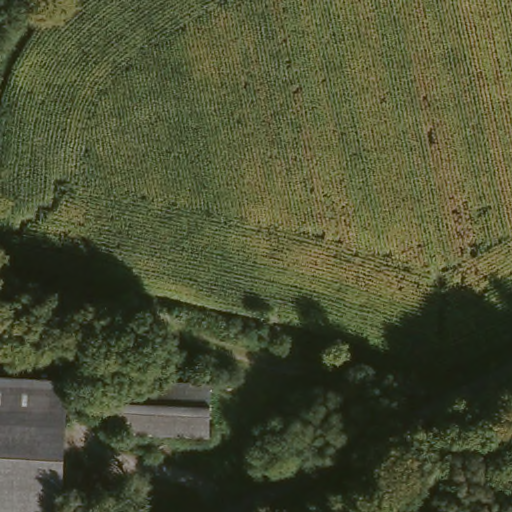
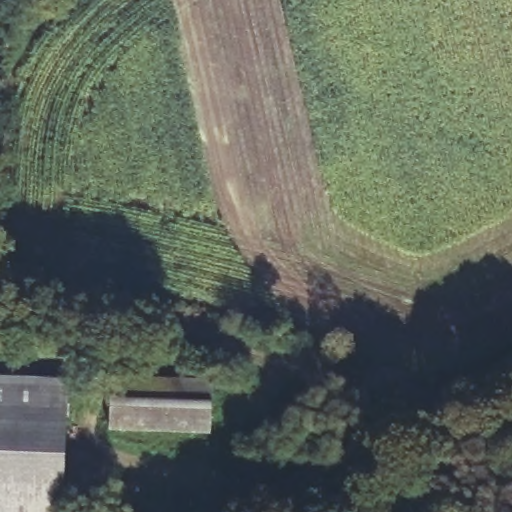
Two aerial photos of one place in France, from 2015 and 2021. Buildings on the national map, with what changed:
unchanged [(215,385),(212,434),(114,431),(116,380),(215,385)]
unchanged [(62,512),(0,512),(0,382),(68,385),(62,512)]

